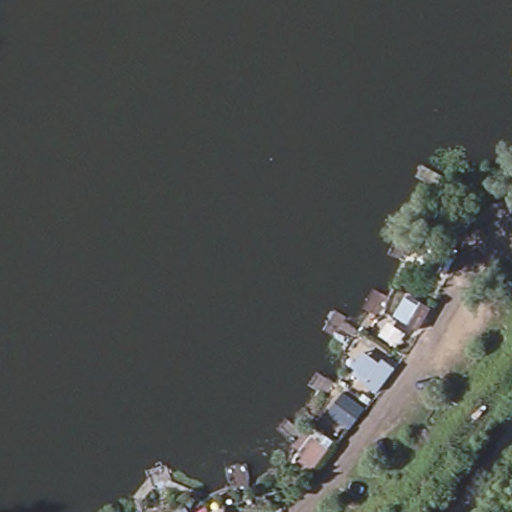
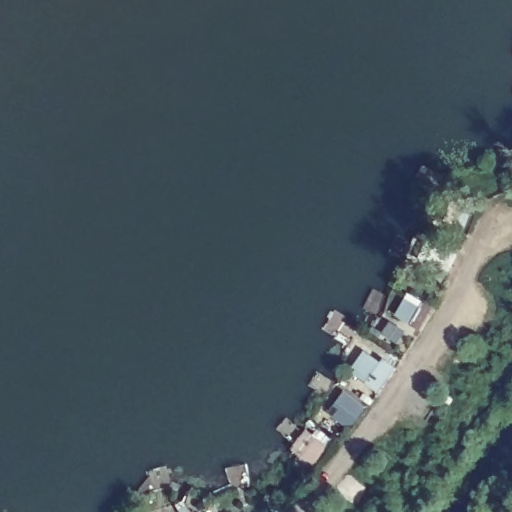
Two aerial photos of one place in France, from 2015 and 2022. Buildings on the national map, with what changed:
unchanged [(367,430),(334,415),(354,390),(377,405),(367,430)]
unchanged [(309,475),(284,458),(305,434),(329,452),(309,475)]
unchanged [(165,509),(167,512),(156,512),(165,509)]

